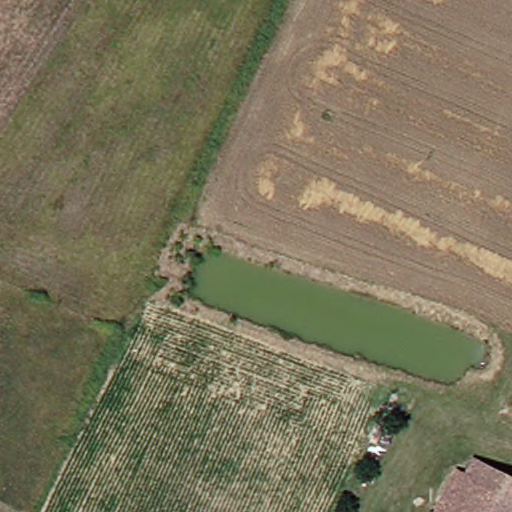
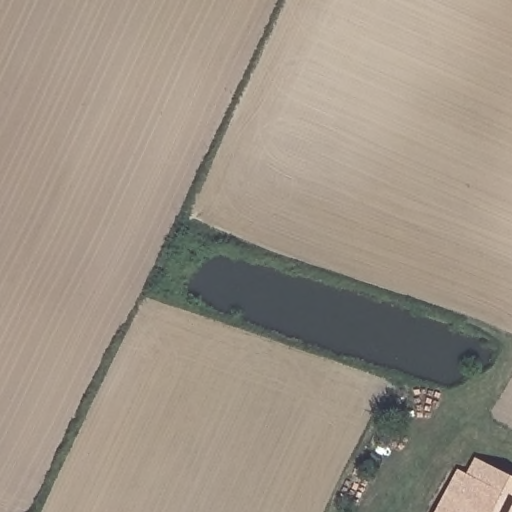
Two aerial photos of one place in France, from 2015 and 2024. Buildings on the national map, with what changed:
unchanged [(512,478),(512,512),(483,512),(493,491),(460,474),(467,457),(512,478)]
unchanged [(483,512),(429,512),(449,469),(460,474),(493,491),(483,512)]

